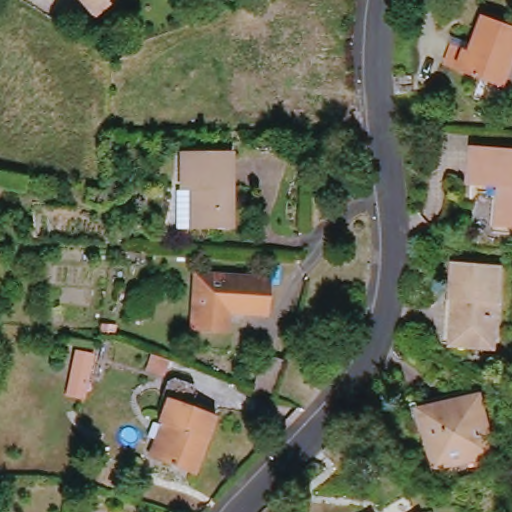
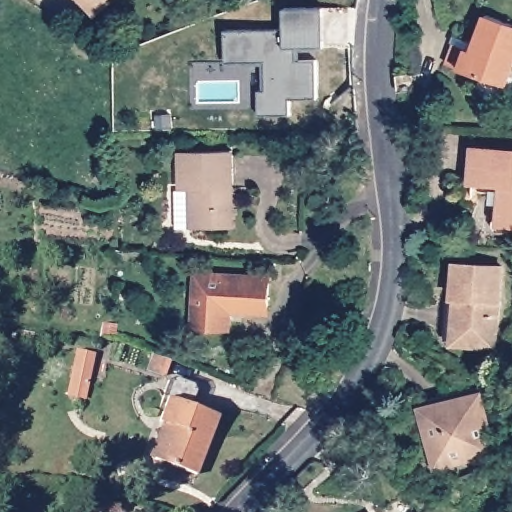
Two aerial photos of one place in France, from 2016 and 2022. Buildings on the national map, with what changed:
unchanged [(117,5),(102,17),(87,0),(114,0),(113,1),(117,5)]
new [(286,29),(286,8),(323,7),(324,47),(300,47),(300,60),(315,60),(315,101),(288,100),(288,116),(260,115),(260,91),(262,91),(262,65),(227,64),(227,30),(286,29)]
unchanged [(453,66),(460,45),(457,44),(459,36),(480,44),(492,16),(512,25),(512,81),(510,87),(453,66)]
demolished [(309,107),(269,107),(268,84),(247,84),(247,36),(293,36),(293,45),(294,61),(309,61),(309,107)]
unchanged [(426,91),(396,94),(395,76),(425,73),(426,91)]
unchanged [(477,146),(512,149),(512,228),(498,227),(502,188),(473,185),(477,146)]
unchanged [(233,229),(178,229),(178,191),(183,191),(182,152),(233,152),(233,229)]
unchanged [(505,266),(497,351),(450,347),(457,261),(505,266)]
unchanged [(268,315),(230,313),(230,331),(193,328),(197,275),(270,278),(268,315)]
unchanged [(95,355),(90,401),(67,398),(75,352),(95,355)]
unchanged [(287,361),(277,400),(253,391),(265,353),(287,361)]
unchanged [(163,422),(173,394),(169,392),(173,382),(180,379),(198,385),(202,392),(197,406),(223,416),(202,476),(160,461),(151,457),(163,422)]
unchanged [(494,455),(435,468),(421,410),(480,396),(494,455)]
unchanged [(345,473),(322,451),(340,432),(367,451),(345,473)]

